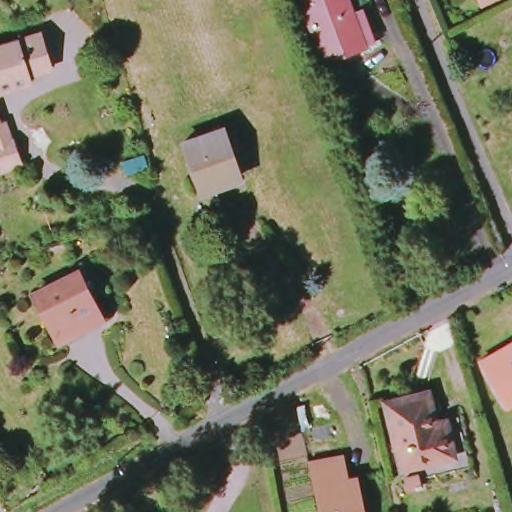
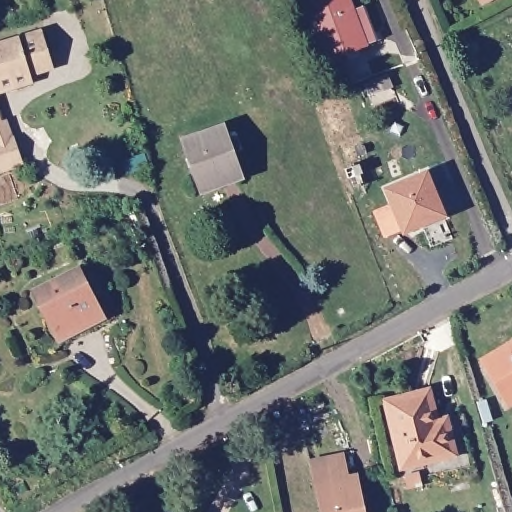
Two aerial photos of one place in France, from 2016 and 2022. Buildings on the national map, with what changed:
unchanged [(302,0),(350,0),(353,7),(361,5),(378,45),(327,64),(302,0)]
unchanged [(483,2),(482,0),(486,0),(483,2)]
unchanged [(53,73),(29,81),(31,86),(0,97),(0,45),(39,32),(53,73)]
unchanged [(0,173),(0,109),(19,167),(0,173)]
unchanged [(185,145),(220,132),(239,179),(203,191),(185,145)]
new [(446,215),(403,232),(384,237),(374,212),(389,202),(384,188),(427,171),(446,215)]
unchanged [(33,295),(74,275),(95,315),(74,325),(78,332),(55,343),(33,295)]
unchanged [(481,361),(512,345),(512,401),(505,405),(481,361)]
unchanged [(418,465),(412,442),(396,445),(384,402),(429,391),(437,423),(448,420),(451,431),(457,455),(418,465)]
unchanged [(345,453),(349,475),(358,472),(367,512),(321,512),(310,462),(345,453)]

